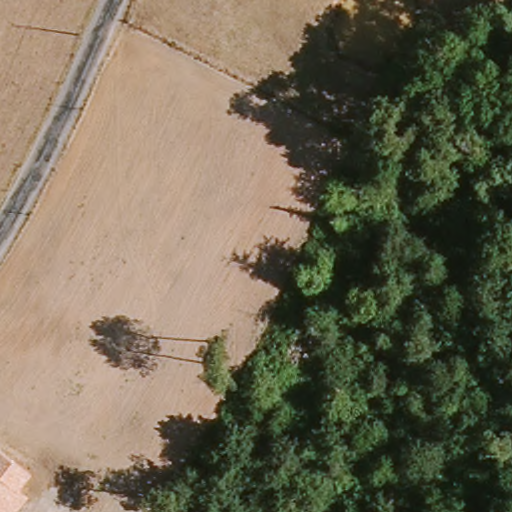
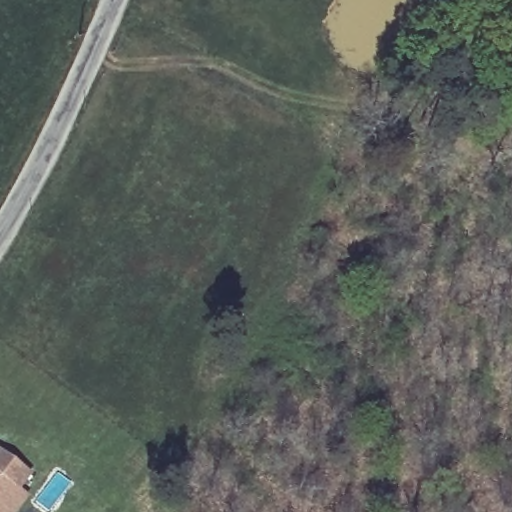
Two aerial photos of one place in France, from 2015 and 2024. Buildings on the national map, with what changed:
unchanged [(20,488),(30,496),(18,512),(0,512),(0,450),(31,474),(20,488)]

